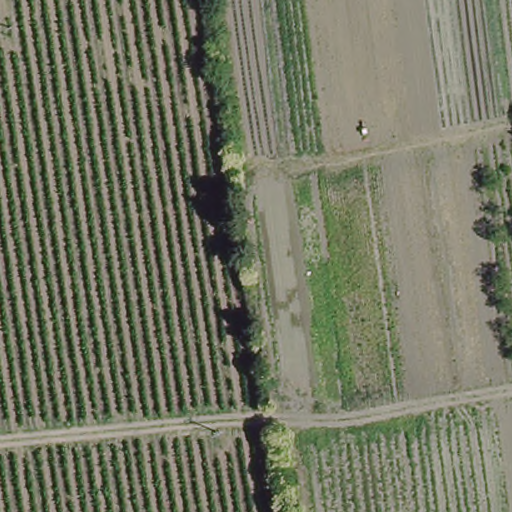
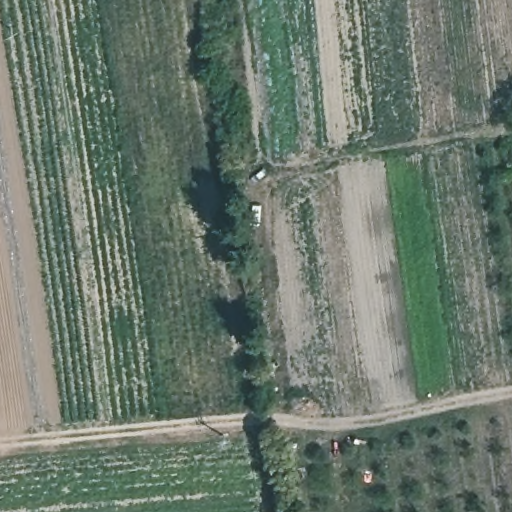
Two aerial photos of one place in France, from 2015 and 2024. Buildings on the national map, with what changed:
[]

